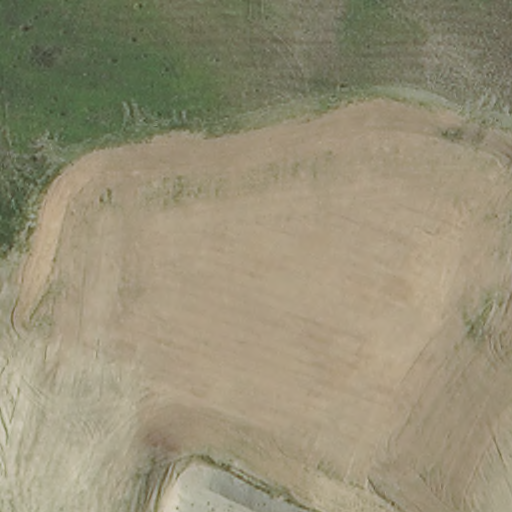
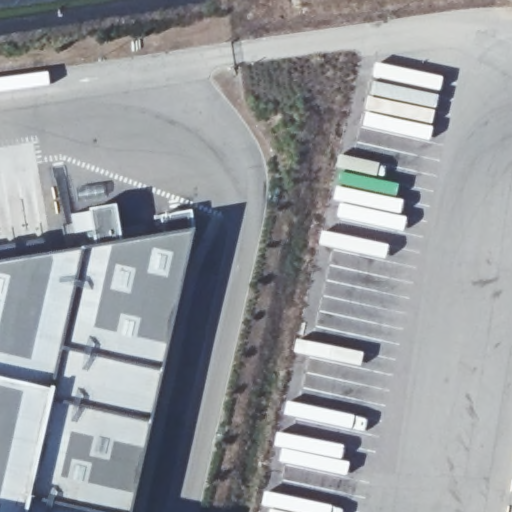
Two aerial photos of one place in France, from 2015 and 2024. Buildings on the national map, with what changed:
new [(148,512),(0,512),(0,262),(213,227),(148,512)]

